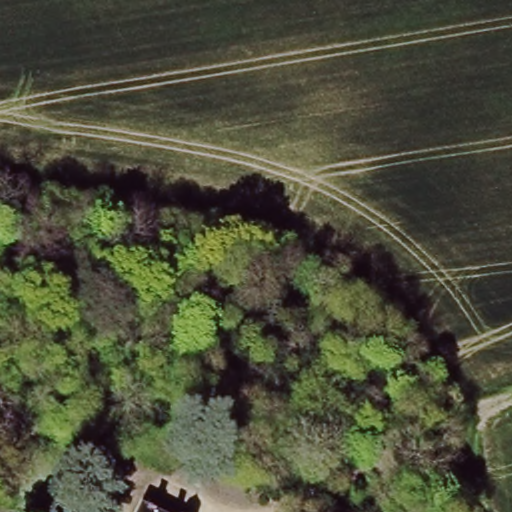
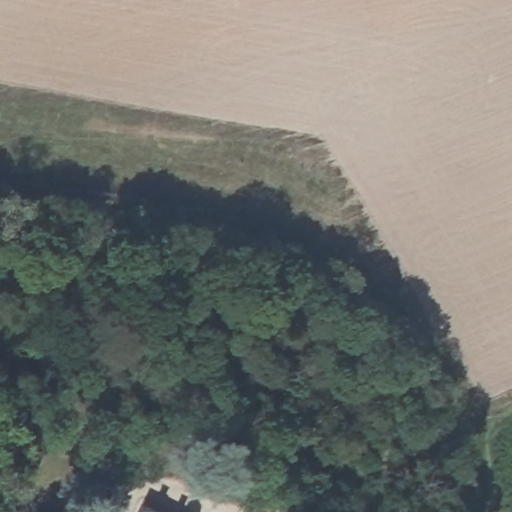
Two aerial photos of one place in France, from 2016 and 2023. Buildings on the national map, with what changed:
unchanged [(149,512),(140,512),(141,508),(149,512)]

